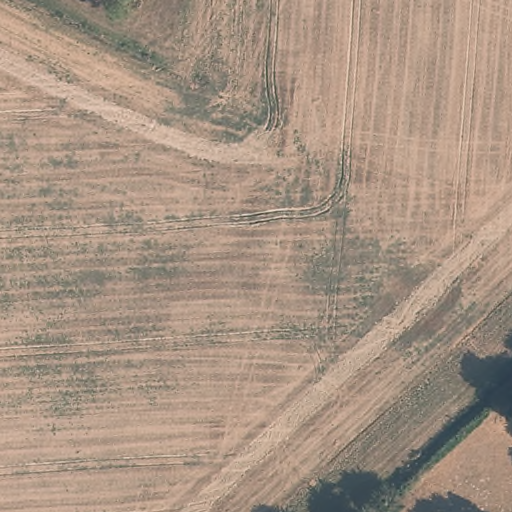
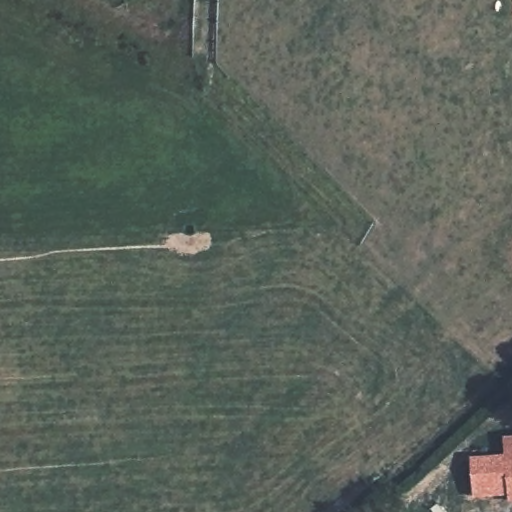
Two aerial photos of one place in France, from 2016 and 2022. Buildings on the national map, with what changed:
new [(509,455),(507,438),(512,438),(512,501),(510,501),(510,493),(476,495),(473,458),(509,455)]

